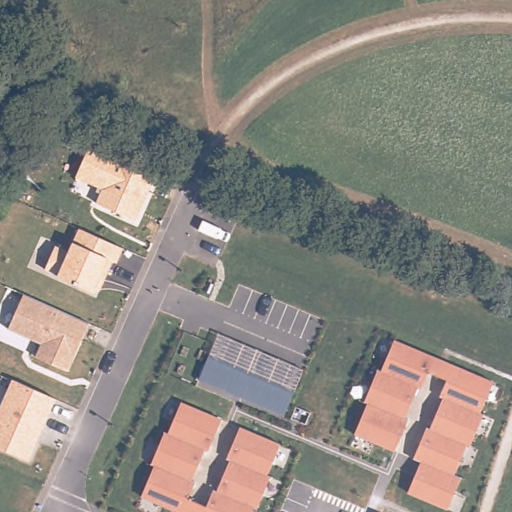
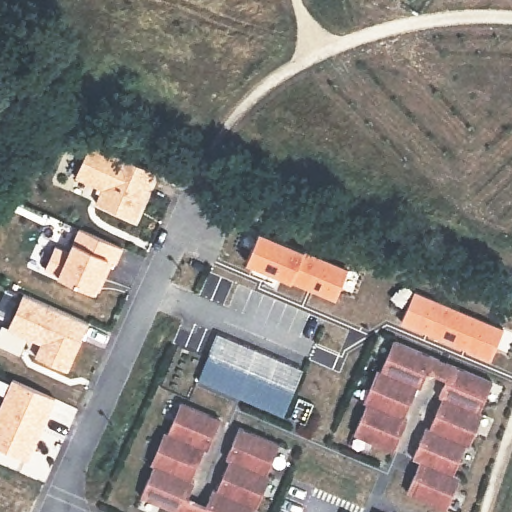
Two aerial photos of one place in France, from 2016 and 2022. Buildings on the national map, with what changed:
unchanged [(158,175),(138,221),(96,202),(99,195),(96,194),(98,189),(77,179),(91,145),(158,175)]
unchanged [(70,251),(80,228),(123,247),(116,263),(112,262),(98,293),(45,268),(55,245),(70,251)]
new [(259,231),(307,250),(351,267),(337,300),(294,282),(246,263),(259,231)]
unchanged [(91,324),(70,371),(34,357),(40,345),(4,330),(21,291),(91,324)]
new [(415,291),(504,328),(492,360),(401,322),(415,291)]
unchanged [(495,383),(470,451),(468,450),(457,475),(461,477),(447,512),(409,495),(421,462),(414,459),(425,427),(432,431),(445,401),(438,396),(444,382),(430,375),(425,385),(421,385),(394,455),(354,436),(366,407),(361,405),(378,366),(384,368),(394,340),(495,383)]
unchanged [(295,390),(281,422),(196,386),(208,353),(295,390)]
unchanged [(31,461),(0,448),(0,413),(14,380),(56,399),(31,461)]
unchanged [(219,419),(187,497),(205,504),(212,487),(219,489),(229,461),(225,458),(238,426),(282,445),(268,475),(273,477),(255,512),(249,508),(247,512),(178,512),(141,496),(156,465),(150,461),(164,430),(167,431),(180,401),(219,419)]

